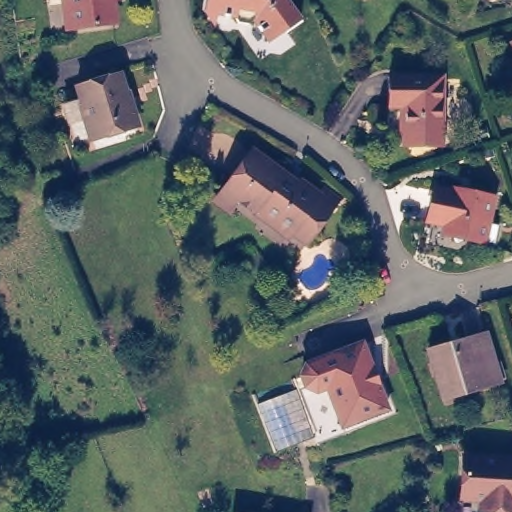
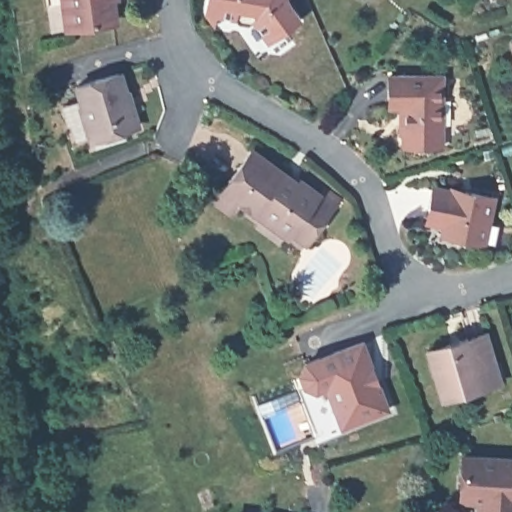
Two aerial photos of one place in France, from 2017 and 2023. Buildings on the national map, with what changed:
unchanged [(72,25),(64,19),(62,0),(109,0),(112,20),(72,25)]
unchanged [(260,28),(248,12),(242,17),(232,15),(229,9),(199,4),(199,0),(286,0),(290,6),(295,12),(264,34),(260,28)]
unchanged [(507,34),(512,32),(512,49),(507,34)]
unchanged [(136,123),(92,137),(76,84),(119,71),(136,123)]
unchanged [(409,143),(409,138),(409,103),(394,103),(394,72),(447,73),(447,138),(447,143),(409,143)]
unchanged [(272,217),(237,192),(235,197),(220,185),(227,175),(251,142),(287,169),(285,172),(296,180),(301,174),(318,187),(325,179),(340,190),(331,202),(307,233),(292,222),(287,229),(272,217)]
unchanged [(474,232),(460,229),(452,234),(440,216),(422,212),(430,179),(447,182),(447,180),(489,189),(484,215),(480,234),(474,232)]
unchanged [(423,346),(446,339),(456,336),(464,333),(482,328),(482,333),(496,377),(459,388),(438,395),(435,385),(423,346)]
unchanged [(301,377),(297,366),(302,355),(357,334),(382,400),(337,417),(322,377),(312,382),(301,377)]
unchanged [(482,490),(462,488),(464,447),(512,449),(512,499),(491,497),(481,497),(482,490)]

